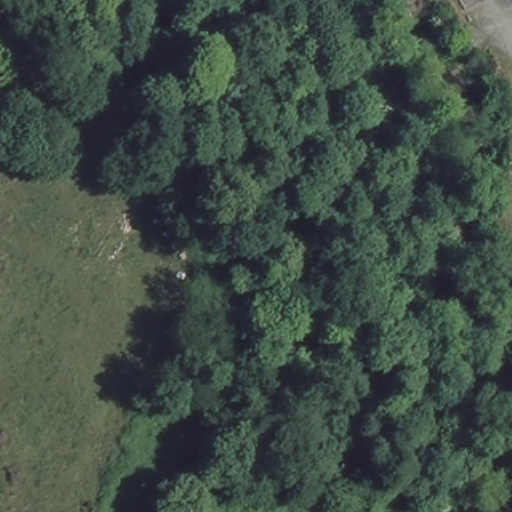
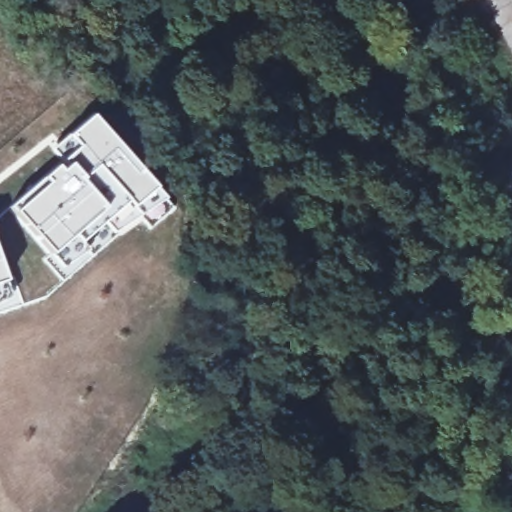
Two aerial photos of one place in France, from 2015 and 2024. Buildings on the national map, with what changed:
new [(58,160),(49,149),(91,113),(174,207),(150,228),(139,216),(63,281),(43,259),(46,256),(4,209),(58,160)]
new [(29,248),(15,263),(19,271),(13,274),(24,304),(0,312),(0,229),(7,226),(29,248)]

